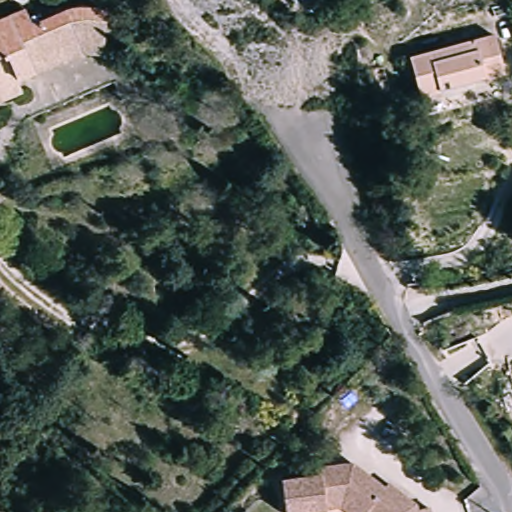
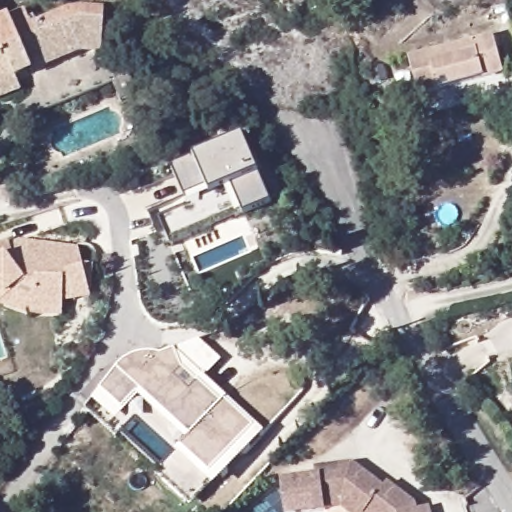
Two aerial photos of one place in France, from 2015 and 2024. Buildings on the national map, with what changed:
unchanged [(0,16),(25,5),(32,20),(63,6),(72,5),(80,4),(106,5),(103,50),(82,49),(17,76),(22,87),(0,97),(0,16)]
unchanged [(500,74),(417,100),(405,61),(488,36),(500,74)]
new [(195,157),(243,137),(258,175),(271,204),(243,216),(171,244),(157,210),(186,200),(173,169),(195,160),(195,157)]
new [(82,264),(94,265),(92,300),(74,303),(63,304),(63,319),(31,318),(0,308),(0,245),(8,242),(10,245),(18,240),(78,248),(82,264)]
new [(186,443),(138,397),(115,423),(92,401),(100,391),(116,369),(124,361),(133,356),(143,354),(152,354),(160,356),(173,350),(198,340),(222,362),(205,379),(264,435),(213,489),(175,453),(186,443)]
unchanged [(342,505),(327,506),(327,508),(299,512),(286,512),(282,480),(317,475),(316,467),(353,463),(384,487),(387,482),(415,504),(417,510),(428,506),(430,512),(351,512),(342,505)]

